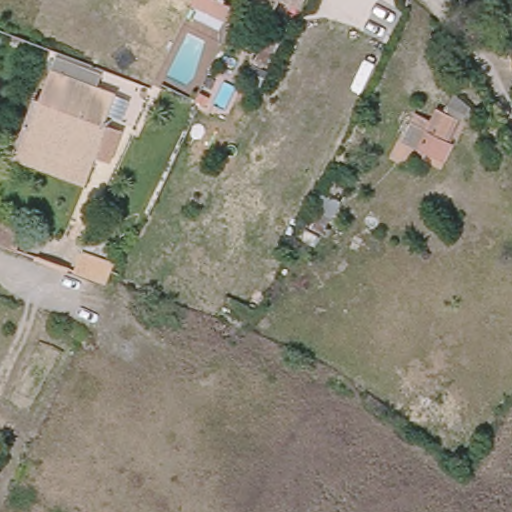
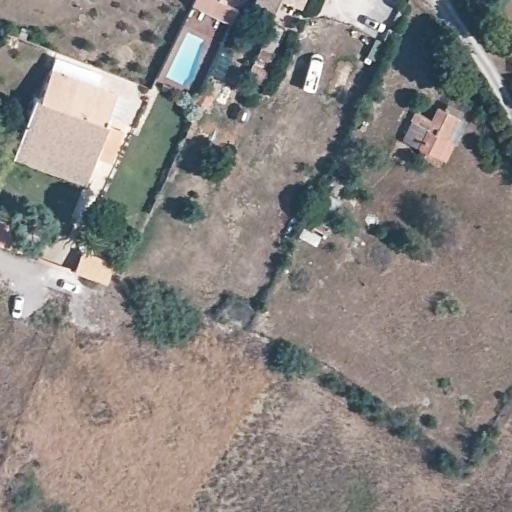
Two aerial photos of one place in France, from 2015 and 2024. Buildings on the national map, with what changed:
unchanged [(227,23),(192,7),(195,0),(230,0),(236,3),(227,23)]
unchanged [(278,5),(271,16),(252,3),(254,0),(305,0),(298,11),(278,5)]
unchanged [(259,45),(269,25),(271,25),(282,30),(271,50),(259,45)]
unchanged [(112,159),(99,154),(95,164),(23,136),(39,92),(42,91),(59,52),(105,69),(100,80),(118,88),(106,118),(113,120),(125,125),(112,159)]
unchanged [(472,106),(465,121),(460,119),(450,141),(455,144),(445,161),(403,141),(416,113),(430,119),(437,108),(443,110),(455,94),(472,106)]
unchanged [(21,136),(23,136),(95,164),(92,171),(89,179),(17,151),(19,144),(21,136)]
unchanged [(328,196),(325,202),(316,199),(314,198),(326,174),(330,175),(343,183),(337,198),(328,196)]
unchanged [(0,239),(0,218),(16,224),(9,242),(0,239)]
unchanged [(78,253),(110,266),(102,284),(71,273),(78,253)]

